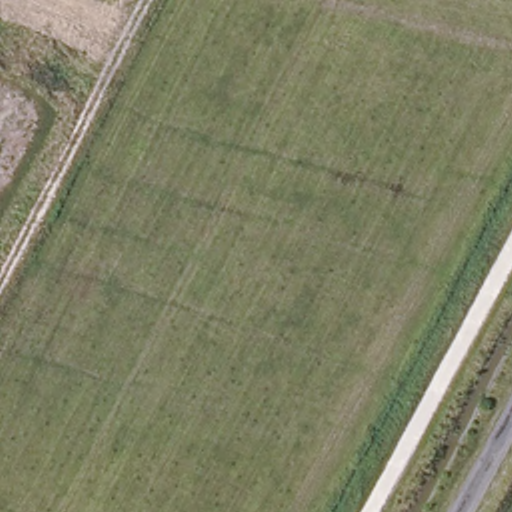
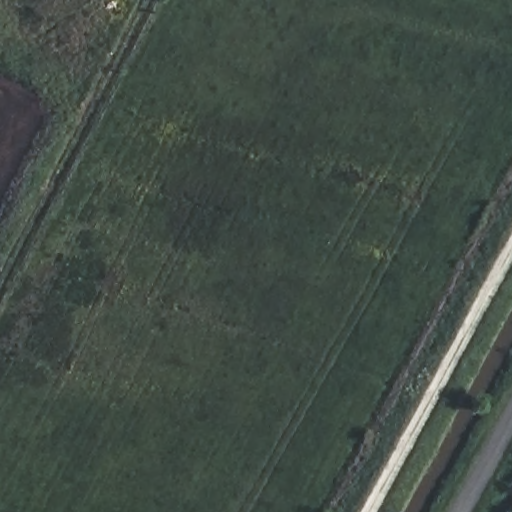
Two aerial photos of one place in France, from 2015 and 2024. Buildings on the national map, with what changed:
[]

